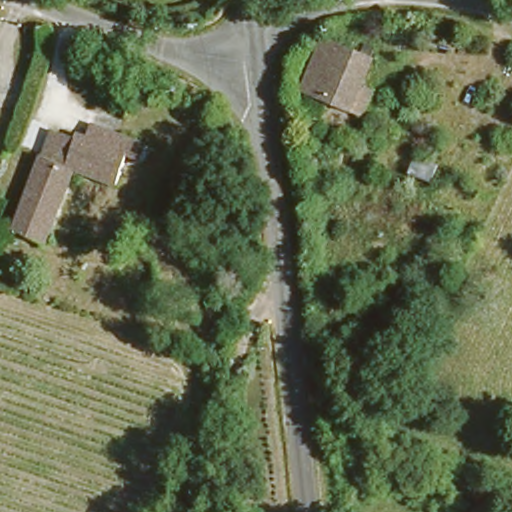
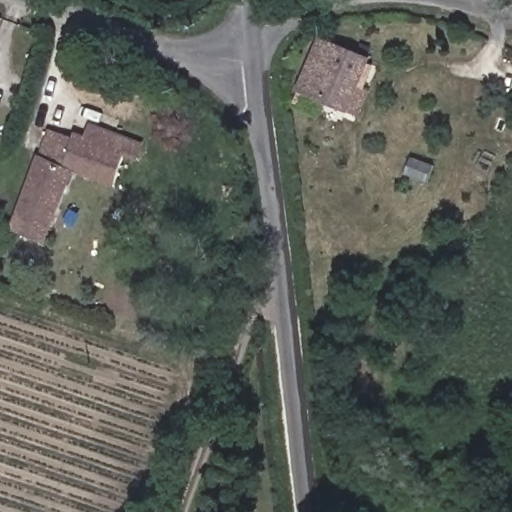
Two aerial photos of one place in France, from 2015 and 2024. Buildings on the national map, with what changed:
unchanged [(338,32),(345,19),(370,30),(364,44),(366,45),(352,76),(362,80),(351,105),(294,79),(320,24),(338,32)]
unchanged [(90,118),(148,137),(145,144),(141,156),(123,151),(83,137),(87,126),(90,118)]
unchanged [(115,180),(70,166),(47,234),(16,223),(51,126),(83,137),(123,151),(115,180)]

